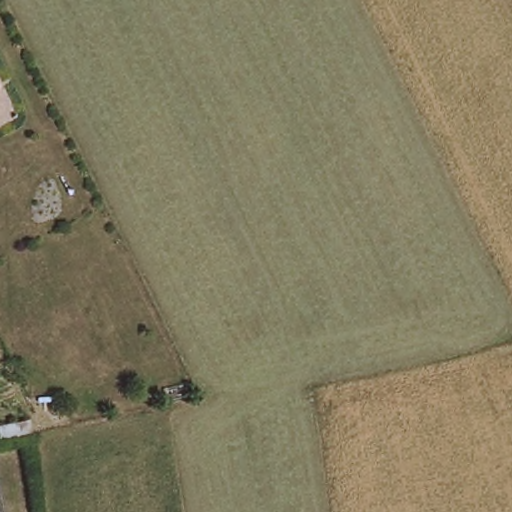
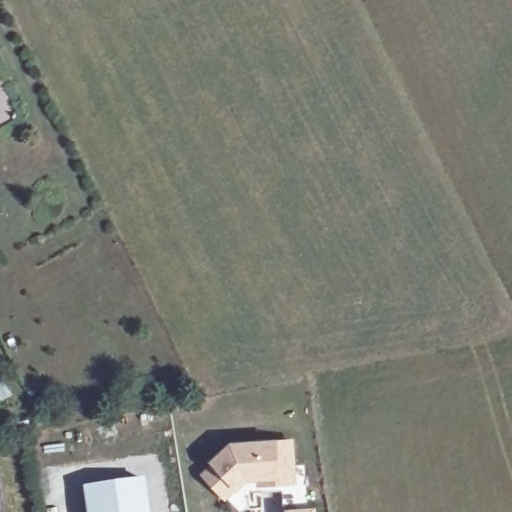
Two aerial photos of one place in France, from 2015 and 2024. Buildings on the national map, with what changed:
new [(258,493),(258,488),(259,483),(250,483),(239,493),(238,491),(227,502),(202,476),(212,463),(233,444),(278,441),(295,440),(298,487),(283,487),(284,492),(258,493)]
new [(145,476),(150,512),(85,512),(81,486),(145,476)]

